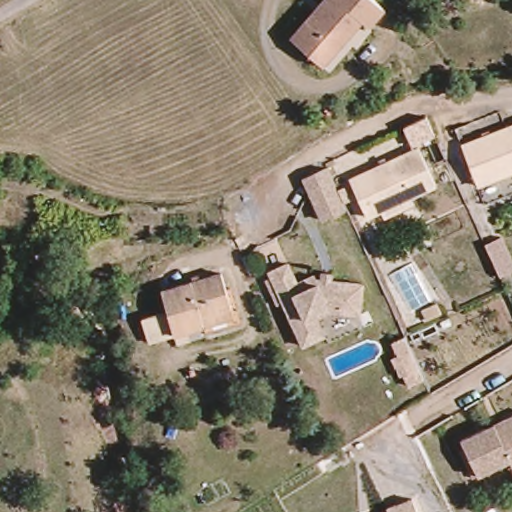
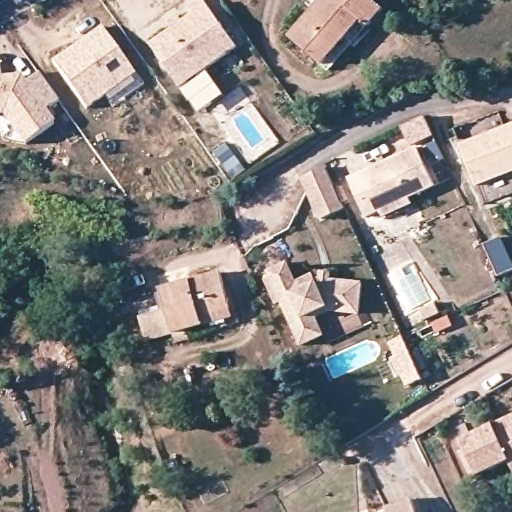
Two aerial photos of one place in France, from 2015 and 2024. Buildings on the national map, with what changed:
new [(192,80),(162,37),(175,27),(171,23),(180,16),(184,21),(194,13),(191,9),(202,0),(205,0),(237,46),(200,75),(220,101),(205,112),(185,87),(192,80)]
unchanged [(318,0),(379,0),(380,1),(364,21),(328,65),(319,57),(292,33),(318,0)]
new [(89,31),(96,26),(108,17),(142,63),(95,99),(61,51),(89,31)]
new [(26,81),(41,71),(60,100),(46,110),(56,122),(27,142),(6,111),(0,111),(0,76),(13,75),(22,75),(26,81)]
unchanged [(417,116),(427,134),(402,147),(392,129),(417,116)]
unchanged [(461,152),(512,126),(512,174),(480,190),(461,152)]
unchanged [(387,220),(382,211),(370,217),(350,178),(411,147),(431,186),(409,197),(414,208),(387,220)]
new [(227,167),(240,158),(247,170),(236,178),(227,167)]
unchanged [(328,167),(345,214),(320,222),(300,178),(328,167)]
unchanged [(491,239),(507,271),(494,278),(477,245),(491,239)]
unchanged [(330,313),(320,321),(327,338),(306,349),(268,274),(286,265),(296,283),(310,277),(317,287),(317,273),(342,280),(359,282),(361,315),(330,313)]
unchanged [(166,310),(161,292),(217,276),(222,295),(227,311),(230,318),(203,327),(175,335),(147,342),(138,319),(166,310)]
unchanged [(426,312),(433,324),(421,332),(413,319),(426,312)]
new [(413,390),(409,379),(404,381),(396,363),(404,360),(399,346),(410,342),(422,373),(427,385),(413,390)]
unchanged [(507,470),(505,466),(476,480),(458,445),(512,418),(512,479),(507,470)]
unchanged [(386,507),(412,497),(417,512),(388,512),(386,507)]

